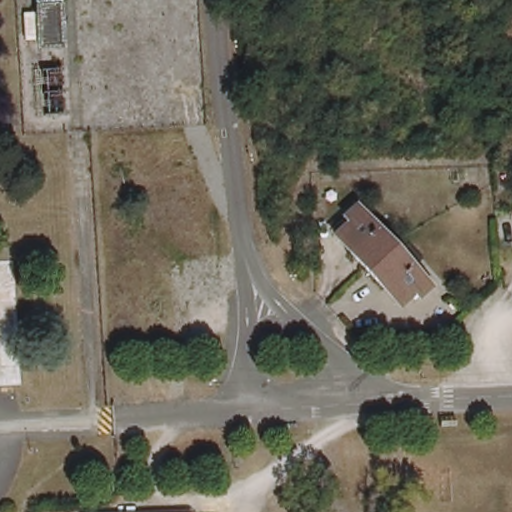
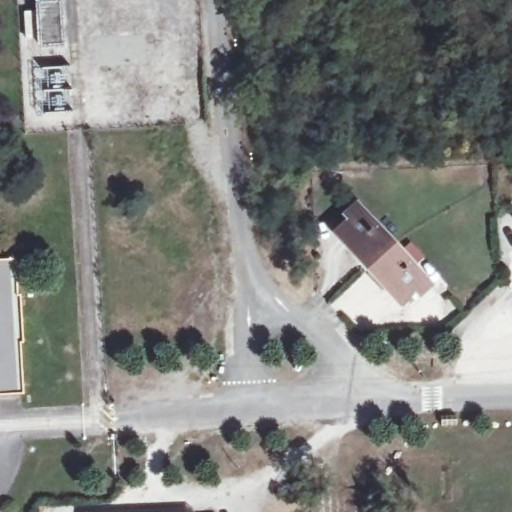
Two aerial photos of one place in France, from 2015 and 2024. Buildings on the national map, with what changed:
unchanged [(58,0),(62,46),(40,48),(37,1),(58,0)]
unchanged [(430,284),(418,294),(413,288),(398,302),(332,235),(348,219),(343,213),(353,204),(430,284)]
new [(13,259),(15,295),(17,294),(18,340),(15,340),(18,391),(0,392),(0,259),(13,259)]

